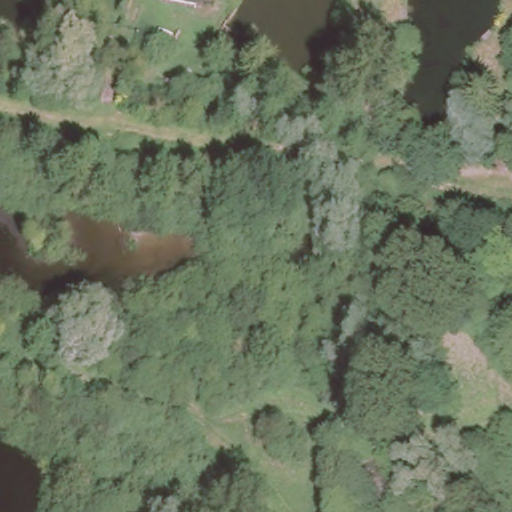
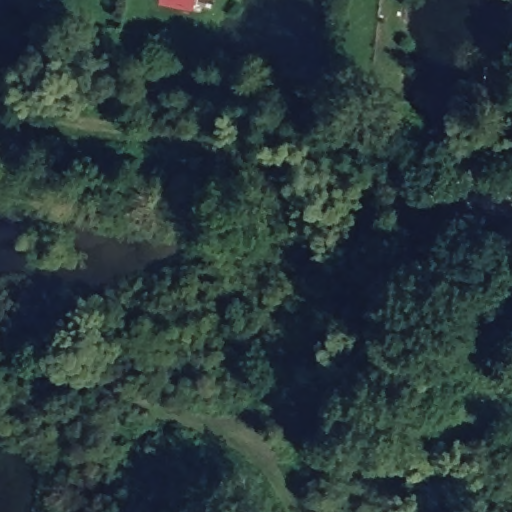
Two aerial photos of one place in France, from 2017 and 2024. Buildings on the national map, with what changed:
unchanged [(165,0),(201,0),(200,7),(165,0)]

